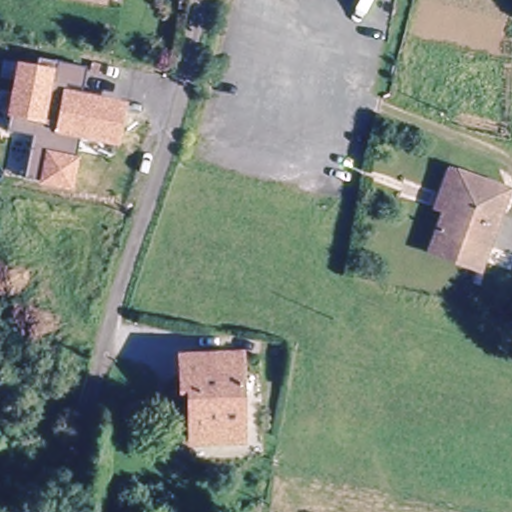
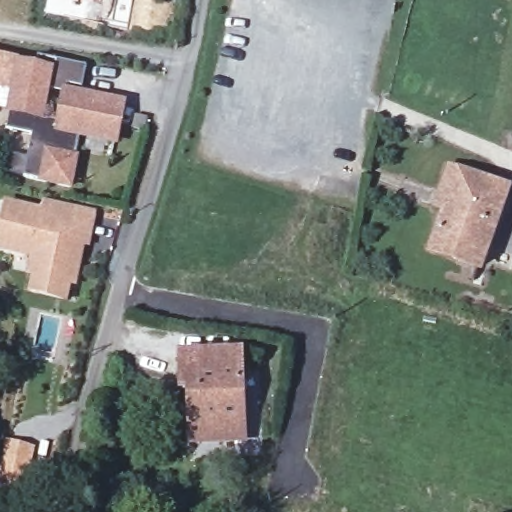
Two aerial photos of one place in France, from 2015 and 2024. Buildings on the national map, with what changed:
unchanged [(37,66),(39,60),(85,69),(81,94),(127,103),(118,147),(79,138),(75,155),(80,157),(73,190),(25,179),(32,137),(6,131),(19,63),(37,66)]
unchanged [(441,206),(430,201),(437,184),(442,169),(445,163),(477,175),(501,184),(476,264),(447,253),(425,244),(431,230),(441,206)]
new [(3,203),(42,211),(43,202),(97,213),(90,250),(84,249),(77,289),(71,288),(67,304),(27,296),(31,280),(26,279),(29,261),(0,256),(0,218),(3,203)]
unchanged [(192,390),(180,390),(179,353),(239,352),(244,440),(192,440),(192,390)]
new [(6,442),(36,449),(25,500),(0,494),(0,469),(6,442)]

